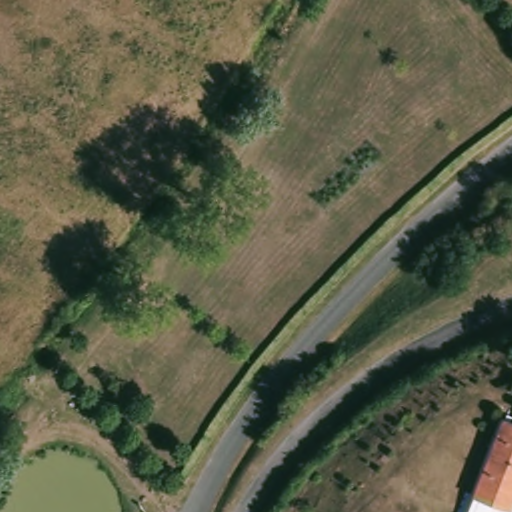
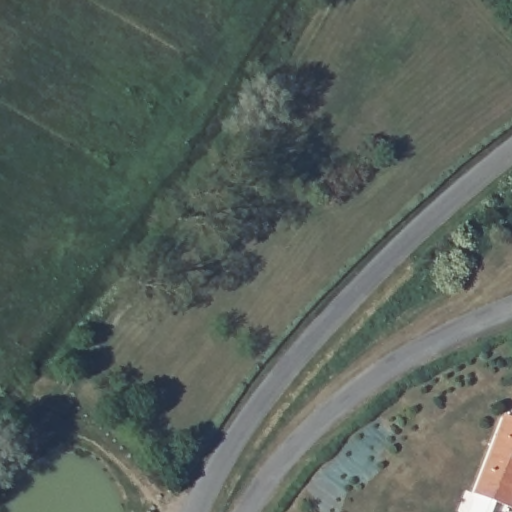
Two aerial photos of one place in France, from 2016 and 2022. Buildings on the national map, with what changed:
unchanged [(503,416),(512,420),(512,510),(473,495),(503,416)]

